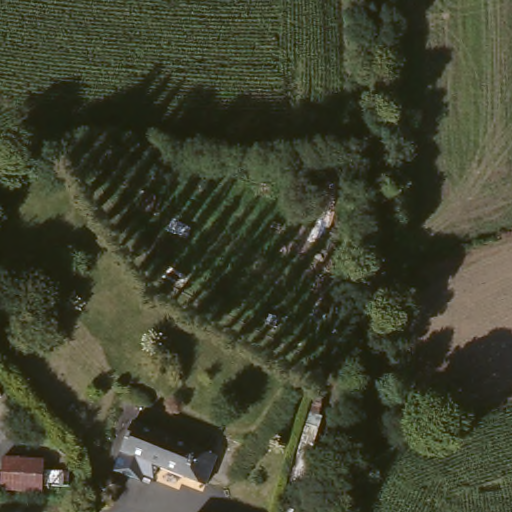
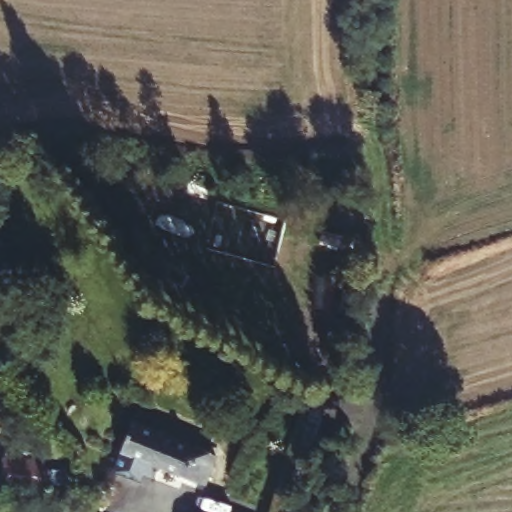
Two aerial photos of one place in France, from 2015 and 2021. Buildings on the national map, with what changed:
unchanged [(223,459),(211,489),(163,469),(158,481),(148,477),(146,484),(118,473),(126,454),(113,448),(126,417),(140,423),(179,440),(223,459)]
unchanged [(38,488),(0,486),(0,454),(40,456),(38,488)]
unchanged [(98,465),(108,493),(84,502),(81,492),(76,473),(98,465)]

